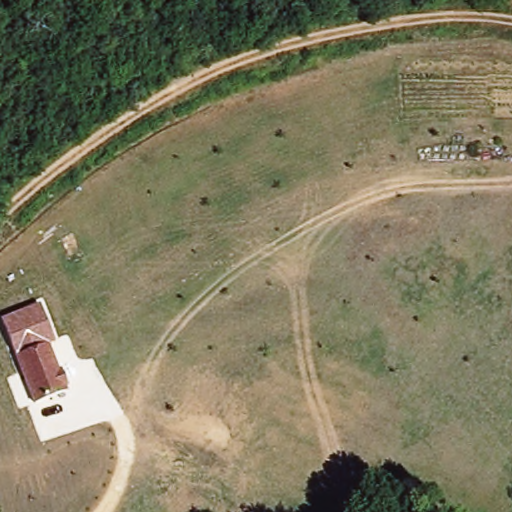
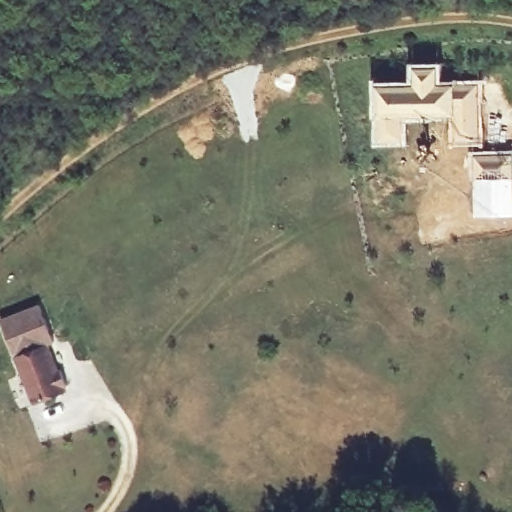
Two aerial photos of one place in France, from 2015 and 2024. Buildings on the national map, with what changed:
new [(409,80),(409,61),(442,61),(442,80),(482,79),(484,143),(450,144),(450,116),(373,117),(372,80),(409,80)]
unchanged [(42,303),(57,343),(51,345),(68,390),(31,404),(1,319),(42,303)]

